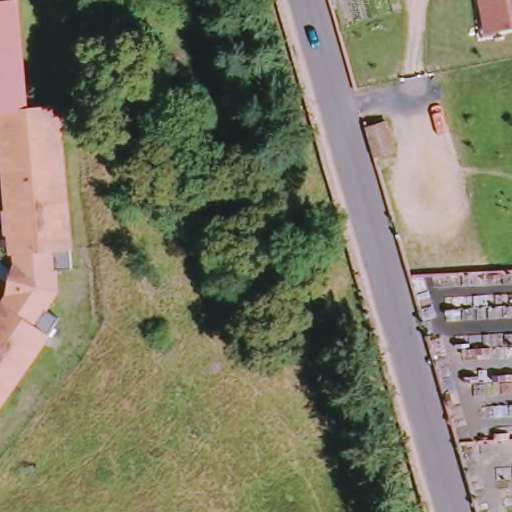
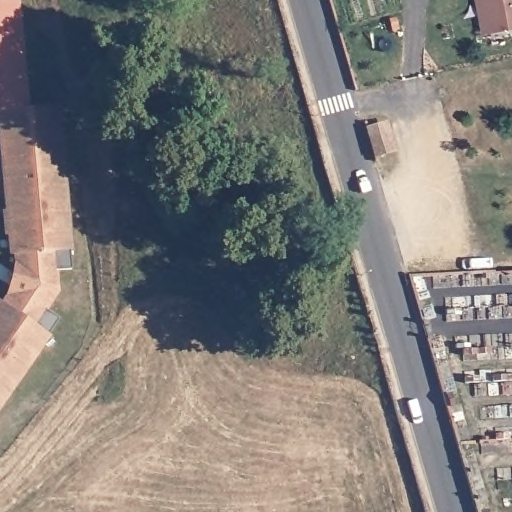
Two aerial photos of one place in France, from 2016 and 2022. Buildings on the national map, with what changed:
unchanged [(10,300),(18,262),(17,254),(14,253),(12,233),(7,233),(4,109),(0,110),(0,2),(15,0),(24,0),(33,110),(64,105),(76,246),(65,249),(65,289),(42,329),(53,338),(0,412),(0,305),(2,303),(10,300)]
unchanged [(512,0),(512,31),(486,35),(479,0),(512,0)]
unchanged [(388,123),(395,152),(376,158),(368,129),(388,123)]

